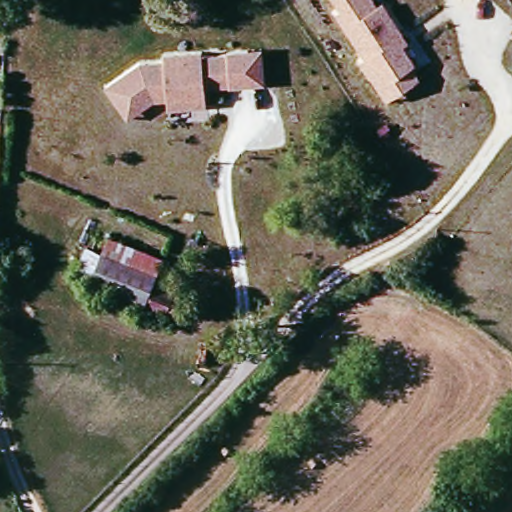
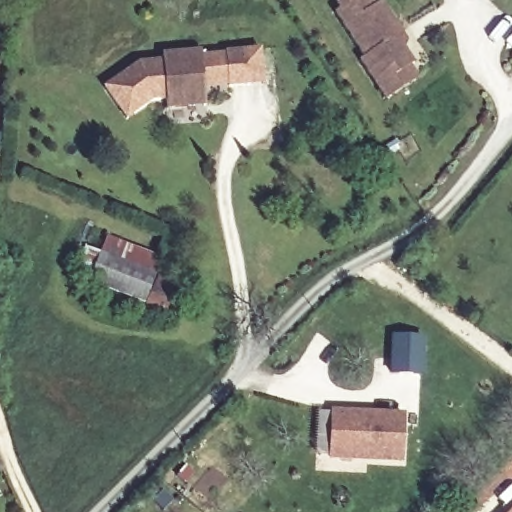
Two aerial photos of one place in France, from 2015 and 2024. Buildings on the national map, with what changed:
unchanged [(383,0),(409,39),(403,44),(416,63),(413,66),(421,79),(386,102),(356,58),(362,56),(334,13),(339,9),(333,0),(374,0),(377,4),(383,0)]
unchanged [(101,86),(137,63),(163,59),(163,53),(201,50),(202,55),(247,50),(261,48),(263,63),(265,83),(261,83),(251,84),(228,85),(229,95),(204,97),(205,106),(166,109),(166,100),(153,100),(133,114),(124,120),(115,107),(101,86)]
unchanged [(124,290),(91,279),(103,250),(135,260),(148,264),(136,294),(124,290)]
unchanged [(184,276),(181,288),(188,290),(182,309),(143,296),(153,266),(184,276)]
new [(391,340),(421,342),(419,377),(388,376),(391,340)]
new [(405,413),(403,465),(329,461),(332,409),(405,413)]
new [(512,512),(508,512),(512,508),(512,512)]

